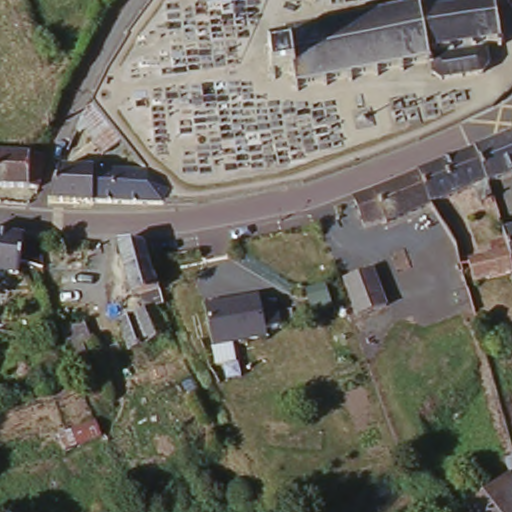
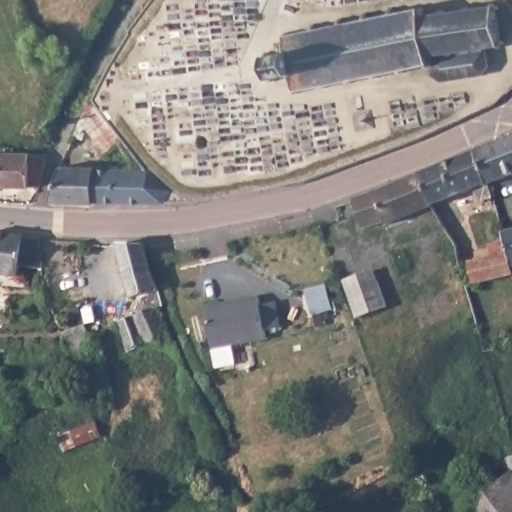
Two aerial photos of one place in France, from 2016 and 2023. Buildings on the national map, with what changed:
unchanged [(498,6),(501,5),(502,8),(499,9),(503,41),(506,41),(506,43),(503,44),(504,46),(501,47),(500,45),(489,46),(491,64),(493,66),(492,67),(490,66),(484,71),(486,74),(481,75),(480,73),(465,76),(465,79),(460,79),(459,76),(444,78),(443,80),(438,78),(439,76),(436,75),(433,76),(431,71),(434,70),(433,66),(430,66),(430,63),(406,67),(407,71),(402,73),(401,69),(380,72),(381,76),(377,77),(376,73),(354,76),(354,81),(350,81),(350,78),(328,81),(328,86),(324,86),(323,83),(301,87),(301,91),(297,91),(297,88),(294,88),(293,84),(295,84),(294,73),(278,76),(278,77),(274,78),(273,76),(271,78),(270,73),(273,72),(269,56),(267,56),(267,53),(270,53),(269,50),(273,50),(273,52),(276,51),(275,43),(284,40),(283,35),(287,35),(286,31),(290,30),(291,33),(313,30),(312,25),(317,24),(318,29),(340,24),(339,19),(344,18),(345,23),(365,20),(364,14),(370,13),(371,19),(391,15),(390,8),(396,7),(396,13),(425,8),(427,16),(445,13),(444,9),(447,9),(448,13),(468,9),(467,6),(473,6),(473,9),(494,6),(494,2),(498,1),(498,6)]
unchanged [(85,108),(90,98),(113,129),(100,140),(86,121),(81,125),(79,122),(85,108)]
unchanged [(512,139),(512,176),(499,182),(495,183),(484,150),(512,139)]
unchanged [(480,281),(474,261),(468,263),(464,242),(459,234),(440,203),(429,172),(484,150),(495,183),(494,183),(499,199),(488,203),(481,187),(450,199),(474,237),(476,252),(473,253),(475,260),(497,252),(496,242),(512,237),(512,272),(480,281)]
unchanged [(0,155),(48,155),(40,187),(0,187),(0,155)]
unchanged [(100,170),(100,172),(96,204),(96,205),(50,203),(60,167),(100,170)]
unchanged [(100,172),(142,174),(146,174),(168,194),(166,207),(96,204),(100,172)]
unchanged [(387,190),(388,189),(429,172),(440,203),(397,221),(396,218),(375,225),(364,198),(387,190)]
unchanged [(511,229),(512,229),(512,233),(511,229)]
unchanged [(27,268),(17,267),(15,276),(0,275),(0,234),(10,236),(38,238),(42,268),(44,287),(29,288),(27,268)]
unchanged [(162,308),(159,309),(169,337),(131,353),(122,324),(146,314),(141,301),(133,302),(118,247),(147,249),(162,308)]
unchanged [(340,279),(373,268),(387,305),(354,317),(340,279)]
unchanged [(304,289),(324,284),(330,310),(311,312),(304,289)]
unchanged [(223,369),(213,371),(209,351),(212,349),(204,307),(258,296),(266,339),(232,346),(239,379),(224,381),(223,369)]
unchanged [(96,345),(86,349),(103,391),(82,397),(62,332),(87,322),(96,345)]
unchanged [(501,450),(507,448),(512,446),(512,467),(508,468),(503,456),(501,450)]
unchanged [(512,474),(512,512),(481,512),(473,500),(510,472),(512,474)]

